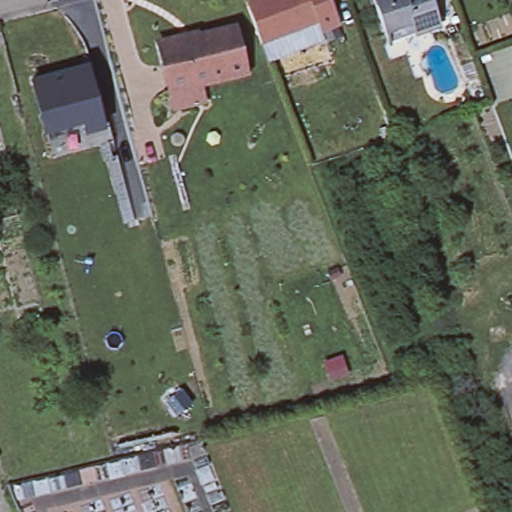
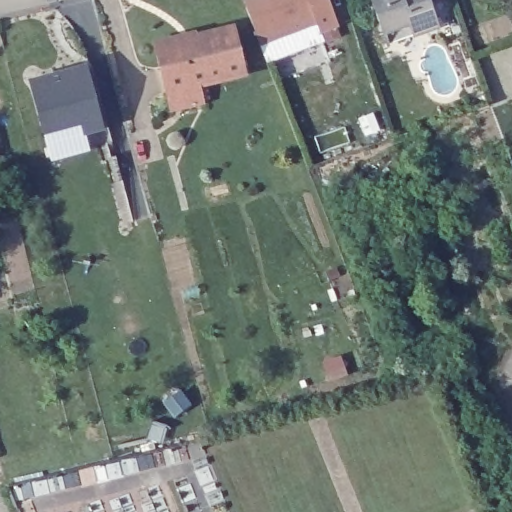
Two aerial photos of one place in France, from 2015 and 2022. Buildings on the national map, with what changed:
unchanged [(316,22),(264,42),(260,44),(254,27),(247,7),(245,3),(245,2),(250,0),(307,0),(316,22)]
unchanged [(340,24),(320,32),(316,22),(307,0),(330,0),(340,24)]
unchanged [(384,34),(372,0),(429,0),(438,25),(414,34),(387,44),(384,34)]
unchanged [(180,38),(182,43),(197,40),(195,37),(232,28),(244,74),(199,84),(203,101),(182,107),(174,109),(157,43),(161,42),(180,38)]
unchanged [(4,46),(0,47),(0,32),(4,46)]
unchanged [(26,77),(89,62),(105,126),(80,133),(79,125),(42,134),(26,77)]
unchanged [(31,332),(25,320),(39,312),(42,318),(46,323),(44,324),(31,332)]

